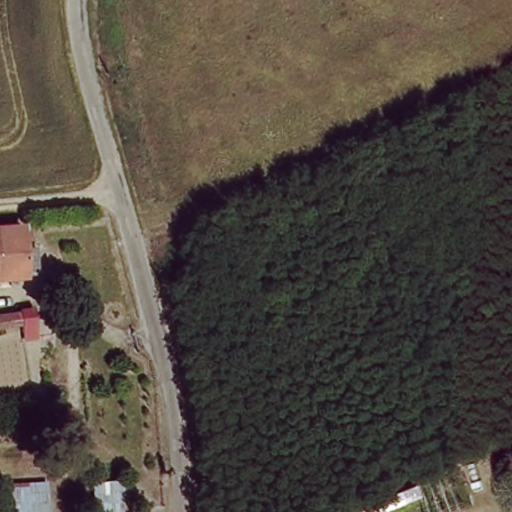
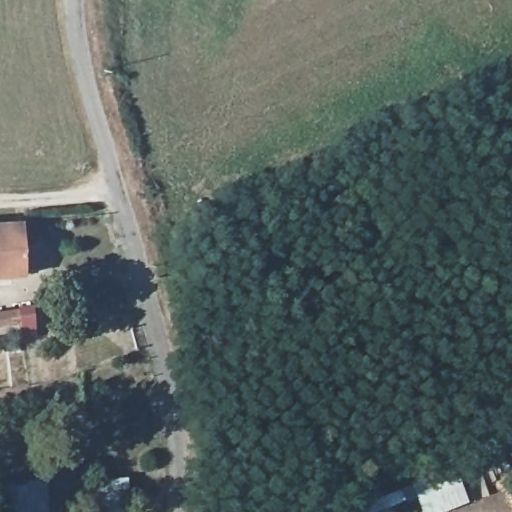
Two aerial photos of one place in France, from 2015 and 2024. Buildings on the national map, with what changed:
unchanged [(18,251),(30,250),(32,278),(0,281),(0,225),(16,224),(18,251)]
unchanged [(22,319),(0,322),(0,309),(20,306),(22,319)]
unchanged [(47,480),(47,512),(0,512),(0,482),(47,480)]

